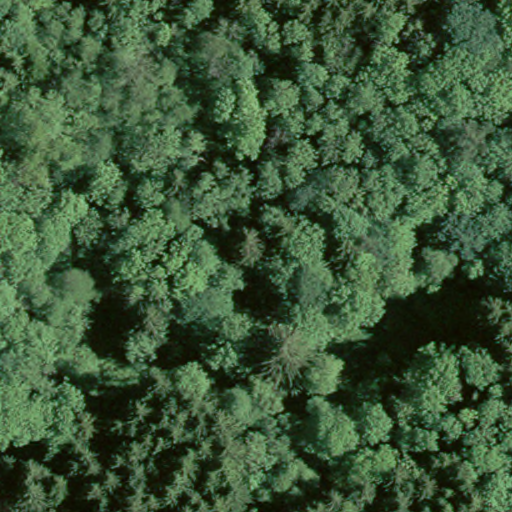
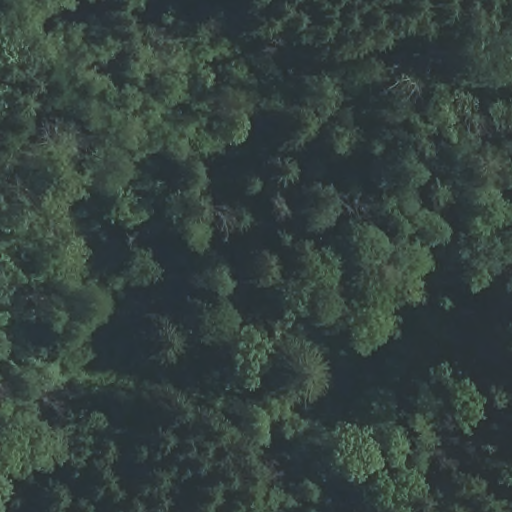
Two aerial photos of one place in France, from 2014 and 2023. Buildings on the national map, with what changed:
unchanged [(250,303),(297,315),(278,391),(231,379),(250,303)]

